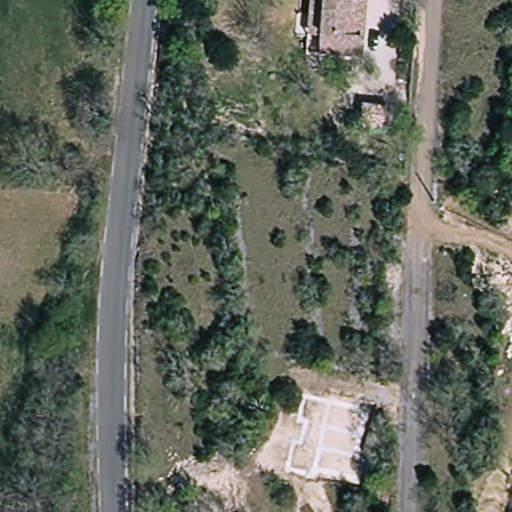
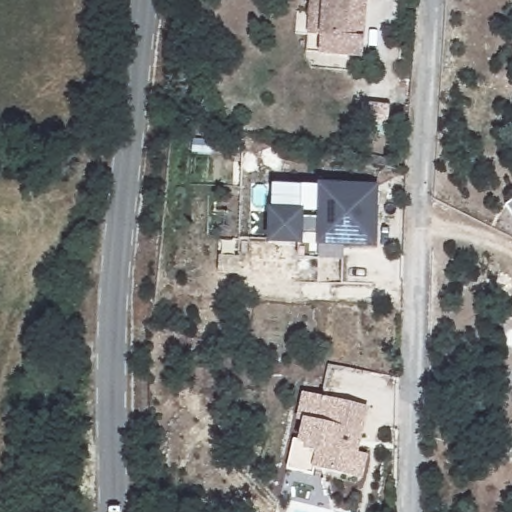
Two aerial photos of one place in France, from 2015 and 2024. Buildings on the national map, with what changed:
unchanged [(364,56),(324,53),(326,33),(311,32),(313,0),(369,0),(366,37),(364,56)]
unchanged [(363,112),(389,114),(388,134),(363,132),(363,112)]
new [(270,209),(301,210),(301,214),(320,214),(321,183),(375,185),(373,241),(318,240),(318,232),(299,231),(299,240),(269,239),(270,209)]
new [(368,407),(359,453),(369,456),(362,480),(313,468),(313,473),(288,468),(293,441),(299,442),(304,418),(298,417),(303,393),(368,407)]

